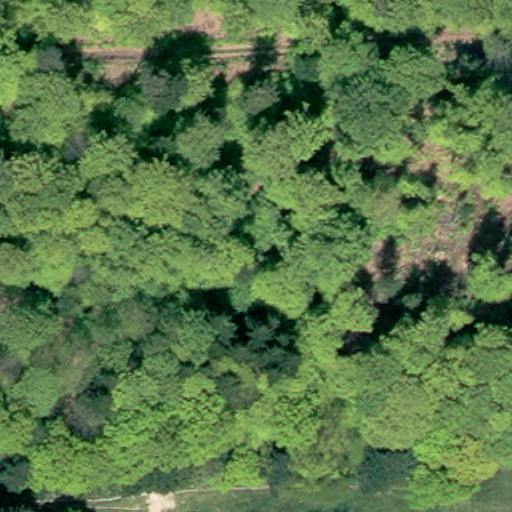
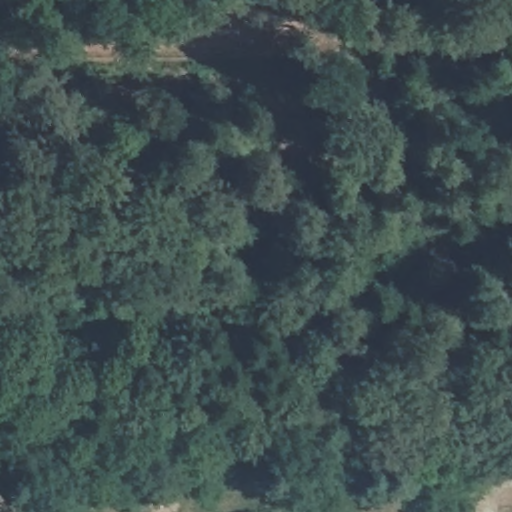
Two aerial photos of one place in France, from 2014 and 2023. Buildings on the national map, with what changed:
[]

